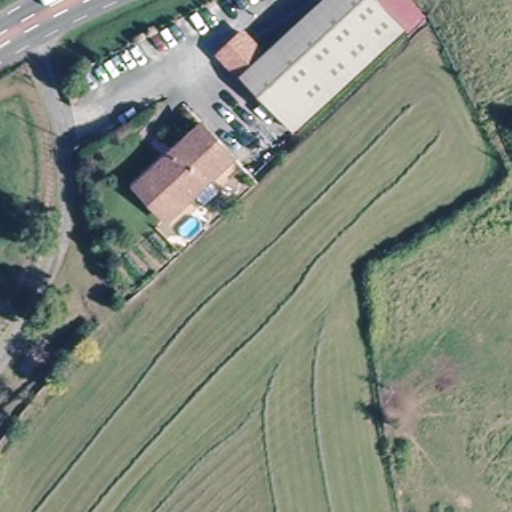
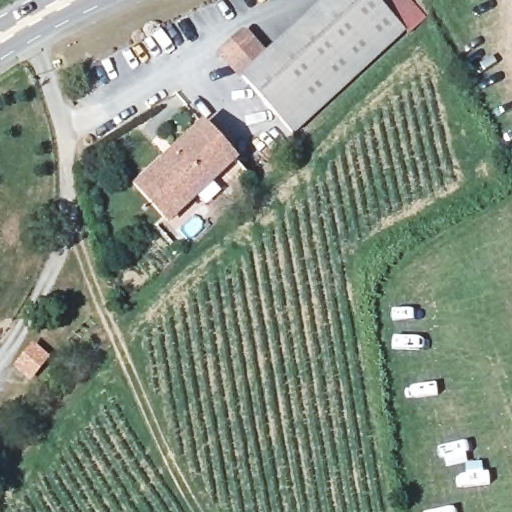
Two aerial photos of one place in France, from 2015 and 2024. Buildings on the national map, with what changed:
unchanged [(245,34),(265,56),(326,0),(376,0),(403,30),(292,131),(221,55),(245,34)]
unchanged [(138,186),(147,177),(204,125),(235,158),(177,211),(169,220),(138,186)]

